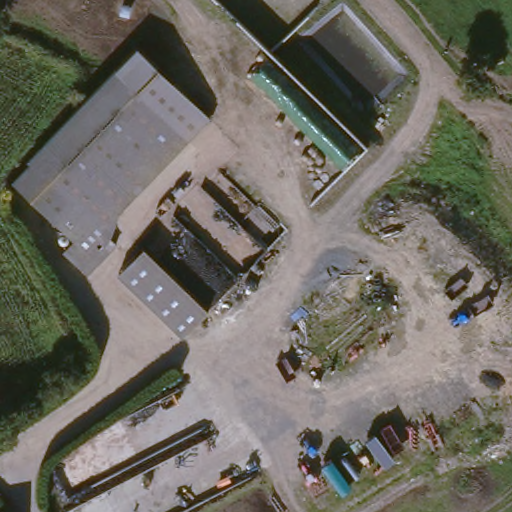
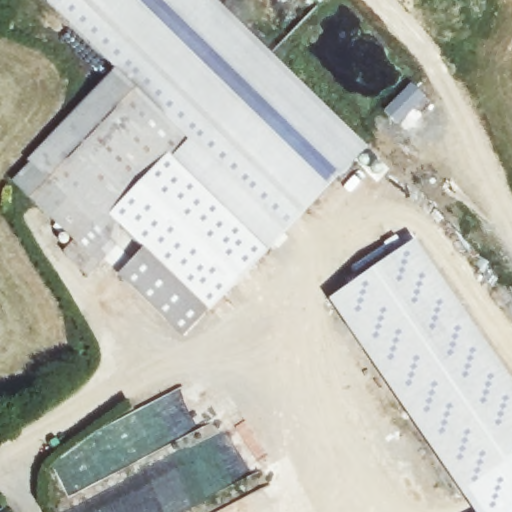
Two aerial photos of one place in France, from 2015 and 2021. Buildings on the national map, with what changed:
new [(202,125),(135,57),(120,72),(44,0),(215,0),(367,149),(268,251),(172,156),(202,125)]
unchanged [(9,181),(135,57),(202,125),(96,232),(89,226),(71,243),(9,181)]
unchanged [(89,226),(96,232),(111,247),(82,277),(59,254),(71,243),(89,226)]
unchanged [(118,275),(142,252),(167,277),(165,279),(145,300),(118,275)]
new [(512,400),(512,480),(465,511),(332,312),(415,256),(512,400)]
unchanged [(185,337),(168,322),(145,300),(165,279),(167,277),(191,300),(207,315),(185,337)]

